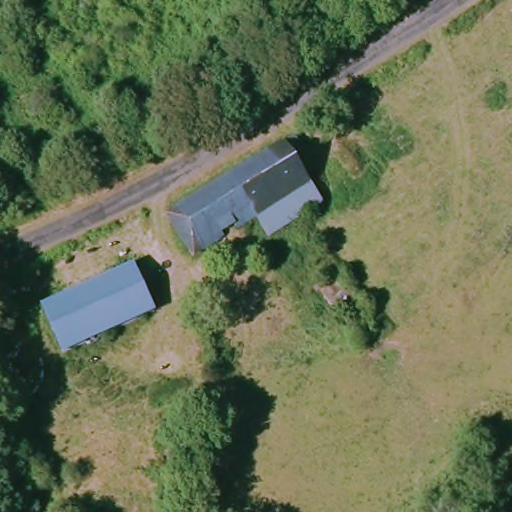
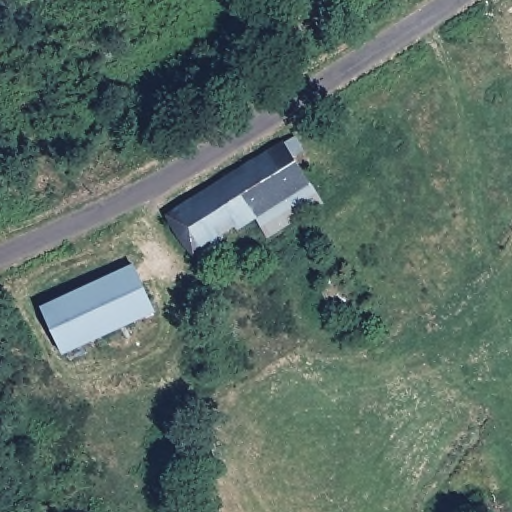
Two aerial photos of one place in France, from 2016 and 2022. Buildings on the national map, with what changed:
unchanged [(300,140),(308,151),(297,158),(326,204),(273,239),(258,220),(198,260),(172,220),(290,145),(300,140)]
unchanged [(155,312),(63,351),(42,306),(133,264),(155,312)]

